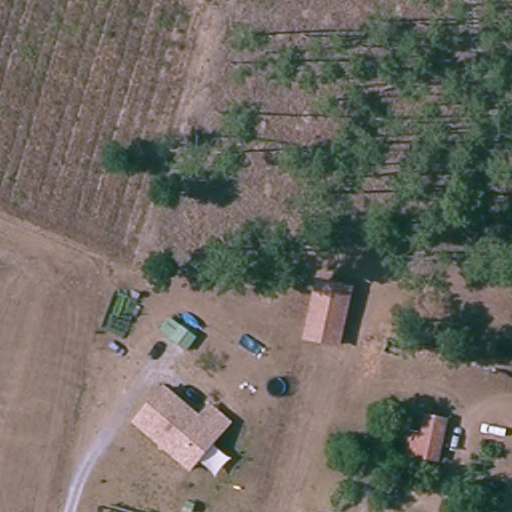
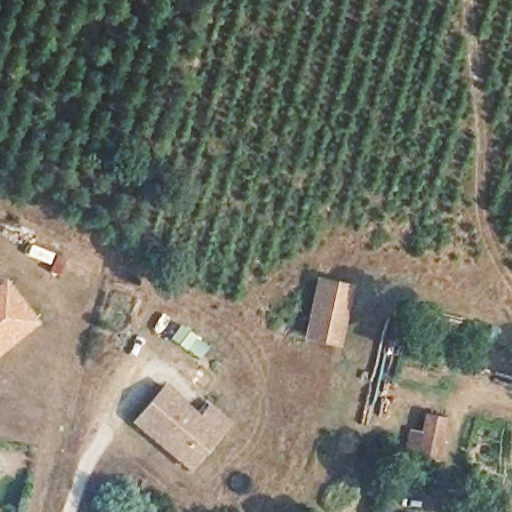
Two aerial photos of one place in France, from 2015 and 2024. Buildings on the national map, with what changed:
new [(38,325),(0,356),(0,284),(4,280),(38,325)]
unchanged [(314,286),(346,294),(335,338),(332,350),(300,342),(303,330),(314,286)]
unchanged [(226,422),(186,469),(177,461),(131,423),(160,388),(196,418),(206,406),(226,422)]
unchanged [(411,437),(422,439),(424,432),(426,421),(445,425),(443,436),(437,465),(417,461),(407,459),(411,437)]

